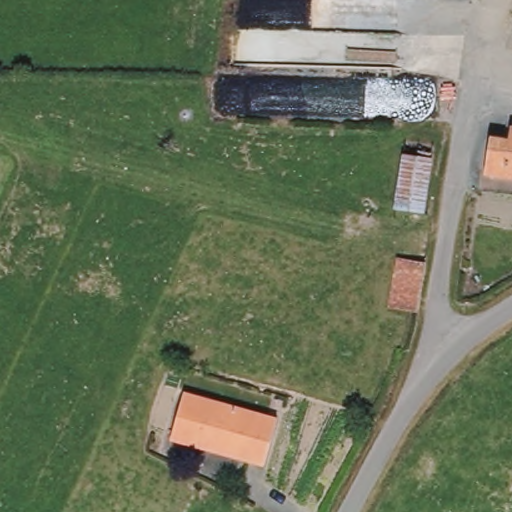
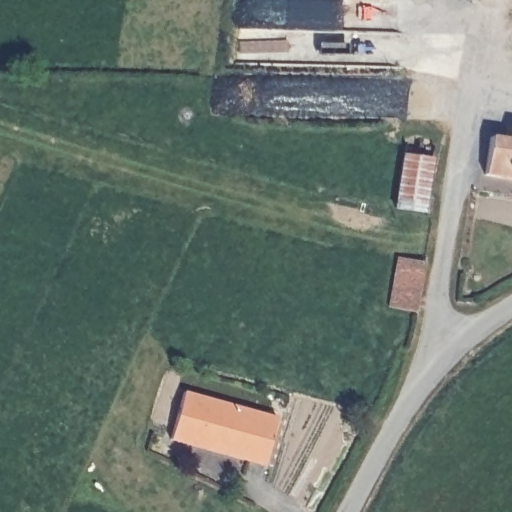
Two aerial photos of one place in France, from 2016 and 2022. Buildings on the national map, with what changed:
unchanged [(512,171),(478,163),(490,123),(510,128),(511,115),(512,116),(512,171)]
unchanged [(391,206),(402,154),(426,161),(423,167),(412,212),(391,206)]
unchanged [(416,314),(385,308),(393,255),(423,260),(416,314)]
unchanged [(272,411),(263,459),(170,442),(179,394),(272,411)]

